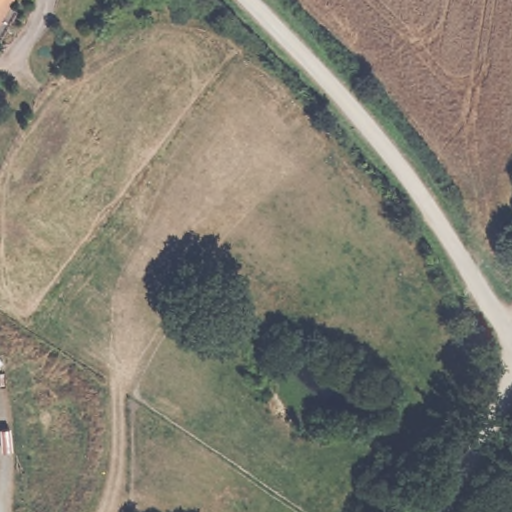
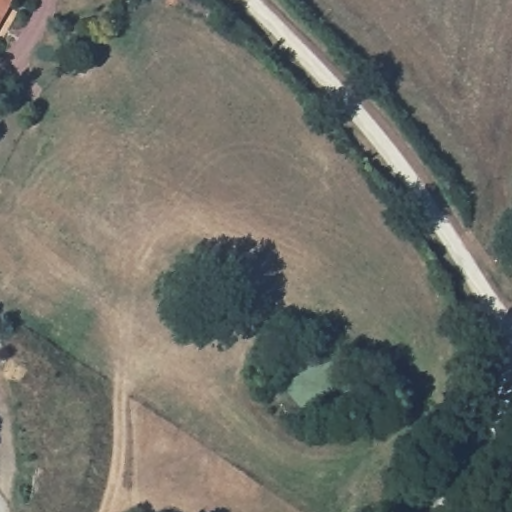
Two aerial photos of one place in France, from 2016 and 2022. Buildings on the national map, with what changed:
unchanged [(19,0),(1,28),(0,31),(0,0),(19,0)]

